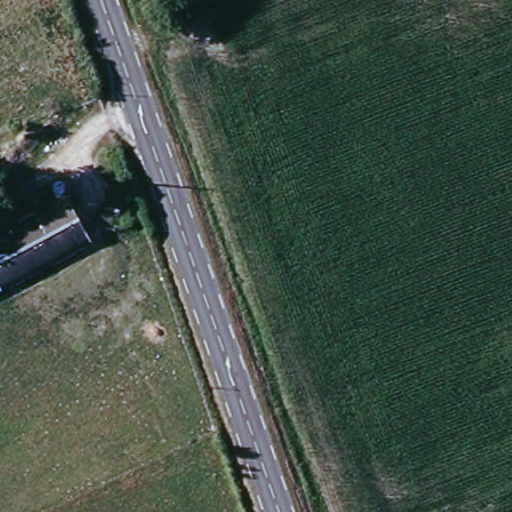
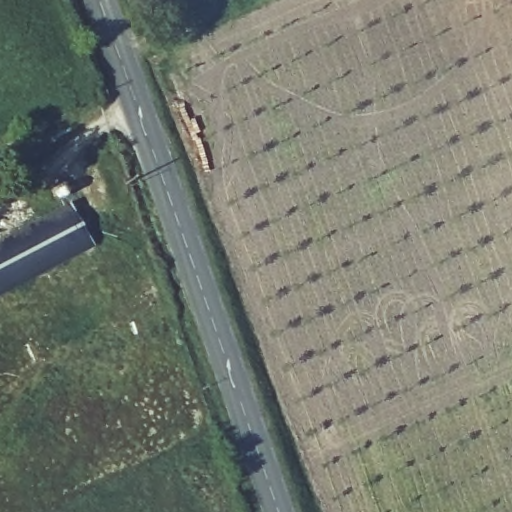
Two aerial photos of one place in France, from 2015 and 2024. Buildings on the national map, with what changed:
unchanged [(0,238),(69,202),(91,247),(0,296),(0,238)]

